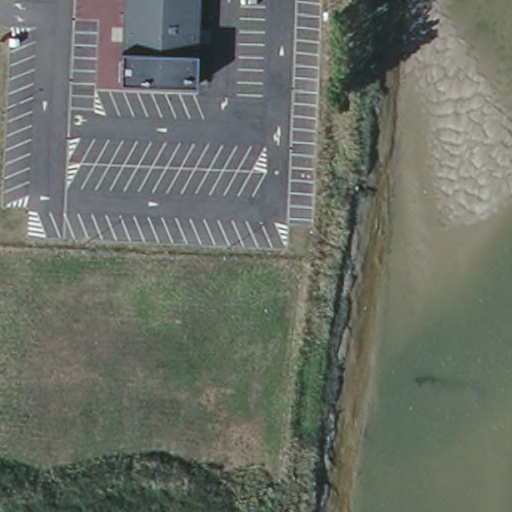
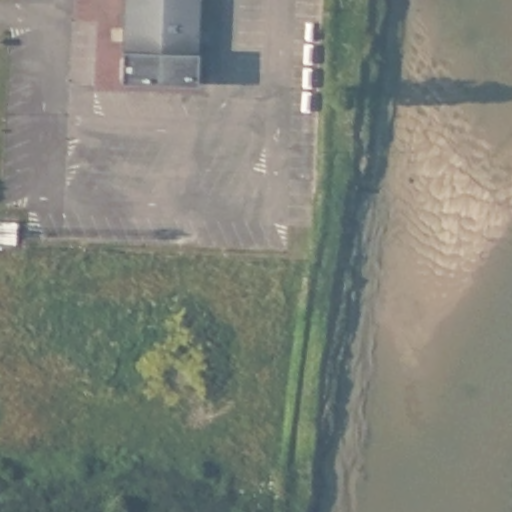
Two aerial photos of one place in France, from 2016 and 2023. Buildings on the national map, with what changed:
unchanged [(191,48),(116,45),(118,0),(194,0),(191,48)]

